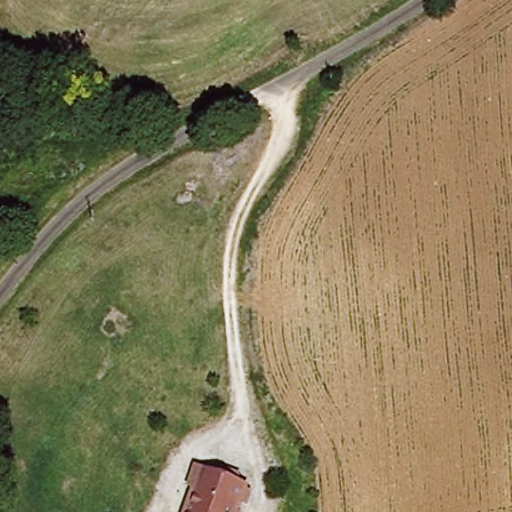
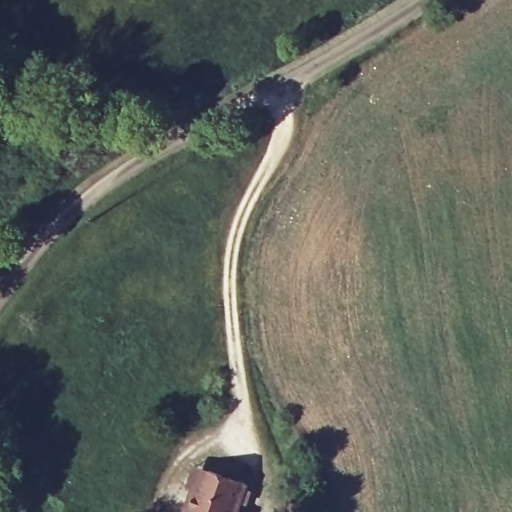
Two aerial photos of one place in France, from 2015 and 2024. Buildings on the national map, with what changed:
unchanged [(185,512),(192,489),(189,487),(194,467),(207,470),(246,483),(237,512),(185,512)]

